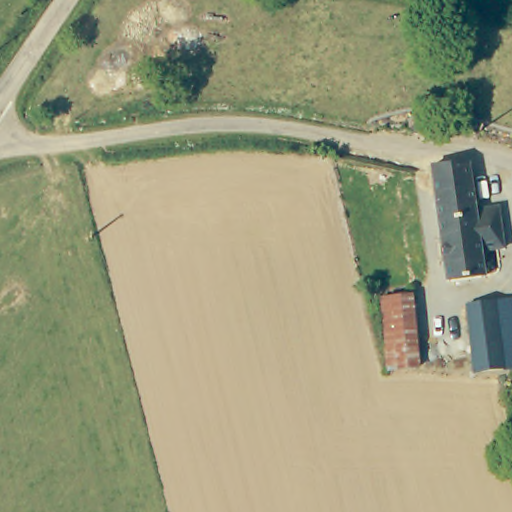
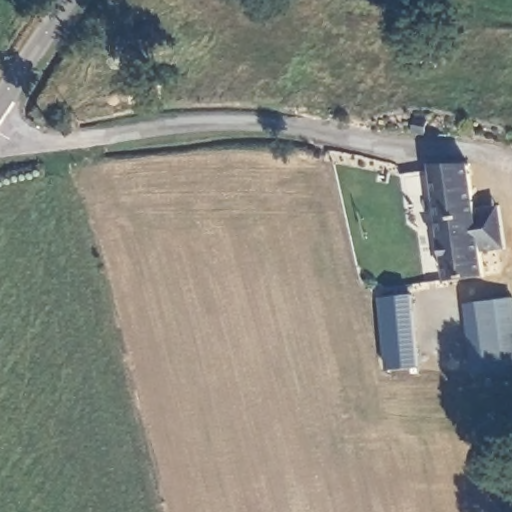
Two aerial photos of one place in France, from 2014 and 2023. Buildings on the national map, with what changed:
unchanged [(473,211),(493,207),(498,237),(476,240),(482,273),(448,279),(430,167),(465,165),(473,211)]
unchanged [(512,366),(501,368),(475,373),(466,306),(511,298),(512,302),(512,366)]
unchanged [(420,366),(394,370),(383,303),(410,300),(420,366)]

